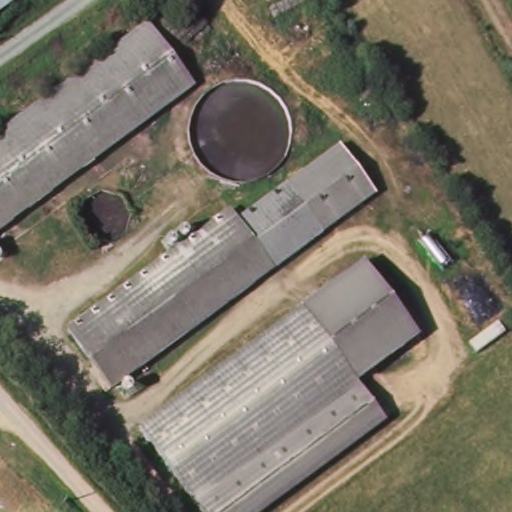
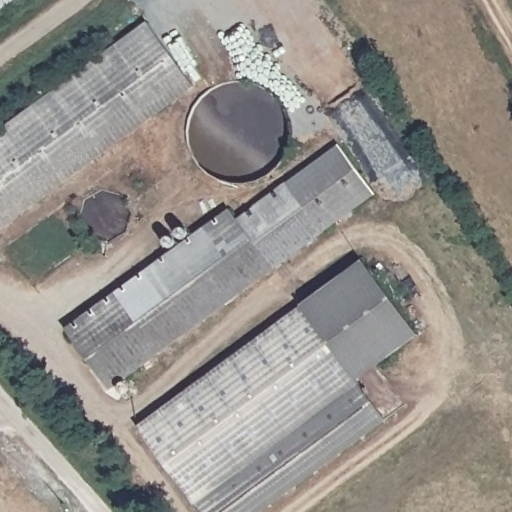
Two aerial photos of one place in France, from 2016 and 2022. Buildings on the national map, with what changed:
unchanged [(23,0),(0,17),(0,0),(23,0)]
unchanged [(197,85),(0,230),(0,133),(152,23),(197,85)]
unchanged [(335,147),(372,197),(272,271),(237,223),(335,147)]
unchanged [(237,223),(272,271),(111,391),(66,332),(229,213),(237,223)]
unchanged [(139,424),(358,263),(415,340),(352,386),(196,501),(139,424)]
unchanged [(383,425),(265,512),(204,512),(196,501),(352,386),(383,425)]

